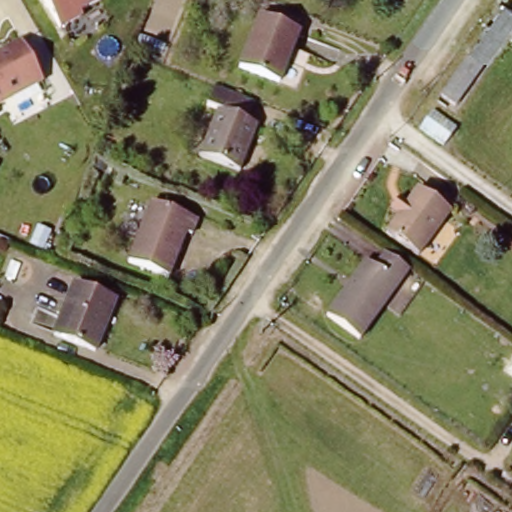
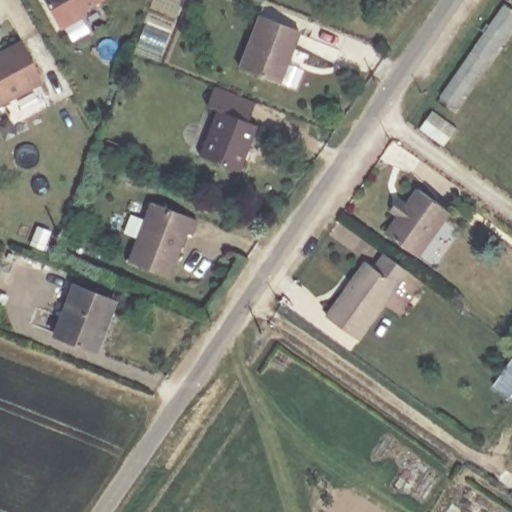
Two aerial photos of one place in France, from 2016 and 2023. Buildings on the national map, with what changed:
unchanged [(44,0),(106,0),(60,29),(44,0)]
unchanged [(445,91),(482,38),(509,0),(512,0),(512,22),(495,47),(458,100),(429,142),(416,132),(445,91)]
unchanged [(302,35),(280,85),(241,68),(263,18),(302,35)]
unchanged [(18,39),(41,86),(0,109),(0,47),(18,39)]
unchanged [(202,161),(221,117),(213,114),(221,94),(261,111),(252,131),(260,135),(241,179),(202,161)]
unchanged [(420,257),(389,234),(403,215),(395,209),(406,195),(413,201),(424,186),(456,210),(420,257)]
unchanged [(197,222),(190,236),(184,234),(165,276),(127,259),(152,202),(197,222)]
unchanged [(360,338),(328,315),(369,259),(378,265),(386,254),(409,271),(360,338)]
unchanged [(116,303),(96,350),(55,332),(75,286),(116,303)]

